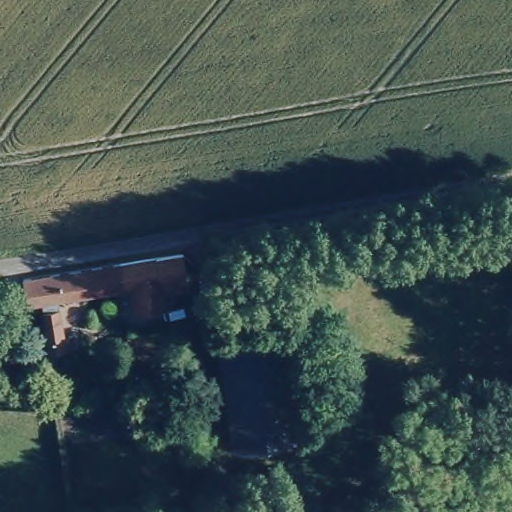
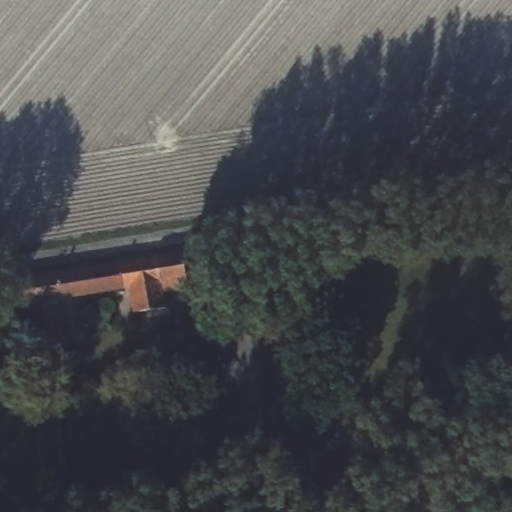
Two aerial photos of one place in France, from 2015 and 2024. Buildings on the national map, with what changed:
unchanged [(132,263),(178,255),(185,294),(162,298),(164,315),(131,321),(126,292),(37,306),(22,308),(17,282),(132,263)]
unchanged [(55,313),(62,340),(70,337),(74,347),(63,350),(65,355),(55,358),(57,363),(47,366),(43,343),(38,316),(55,313)]
unchanged [(282,315),(294,441),(228,447),(215,323),(282,315)]
unchanged [(122,346),(125,363),(112,365),(108,348),(122,346)]

